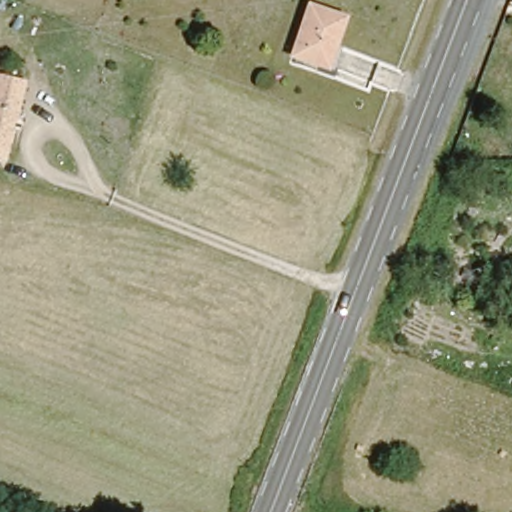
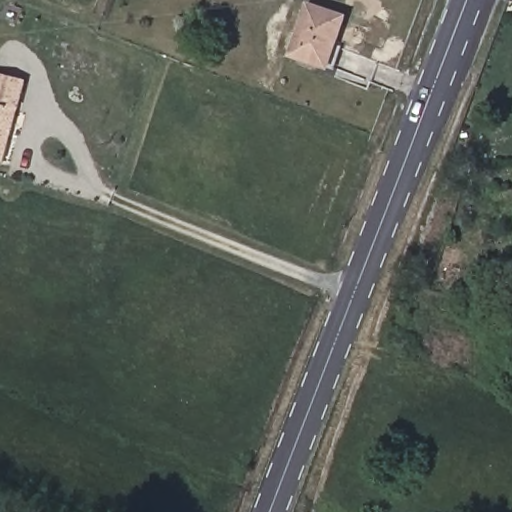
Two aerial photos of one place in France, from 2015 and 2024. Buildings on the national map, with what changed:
unchanged [(351,15),(330,70),(285,52),(306,0),(312,0),(351,15)]
unchanged [(0,81),(16,83),(4,156),(0,156),(0,81)]

